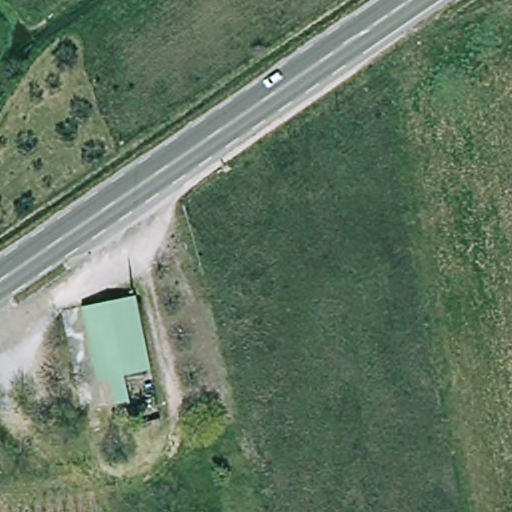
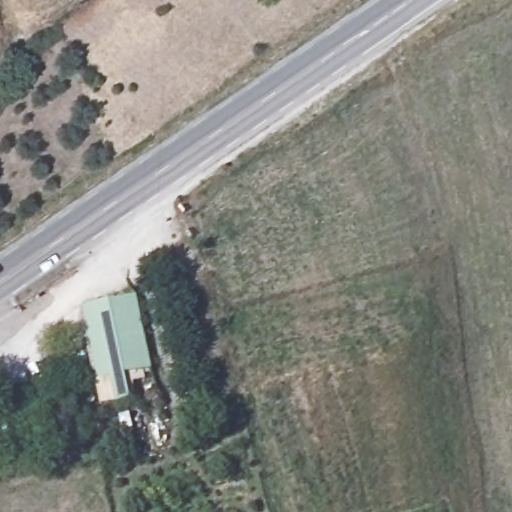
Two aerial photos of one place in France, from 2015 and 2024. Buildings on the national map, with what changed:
unchanged [(132,290),(148,365),(95,376),(78,301),(132,290)]

